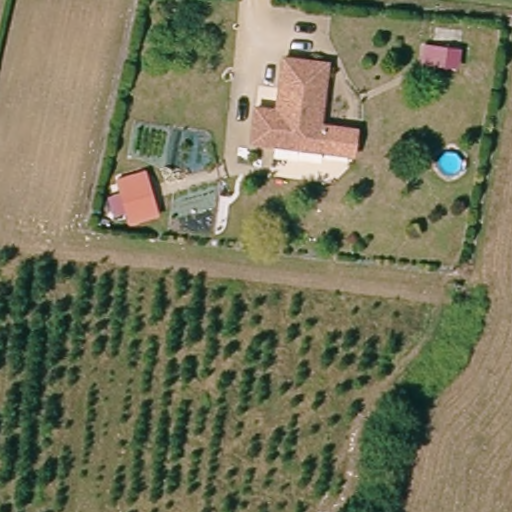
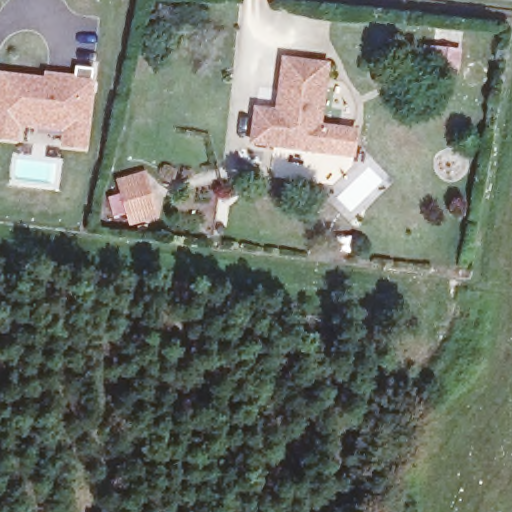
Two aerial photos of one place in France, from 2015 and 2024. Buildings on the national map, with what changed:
unchanged [(422,63),(425,45),(463,51),(460,70),(422,63)]
unchanged [(356,154),(331,150),(260,141),(264,107),(284,110),(289,72),(291,57),(334,62),(332,77),(327,125),(334,126),(358,130),(356,154)]
new [(43,77),(44,72),(75,76),(76,69),(95,70),(88,149),(60,146),(61,131),(21,127),(19,142),(0,140),(0,72),(43,77)]
unchanged [(125,214),(114,217),(108,197),(120,192),(116,179),(147,171),(160,217),(128,225),(125,214)]

